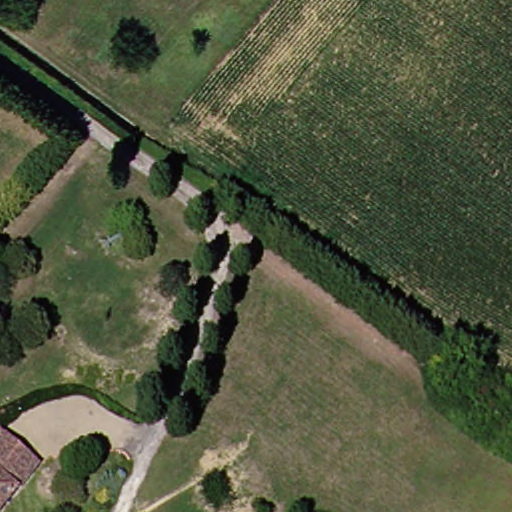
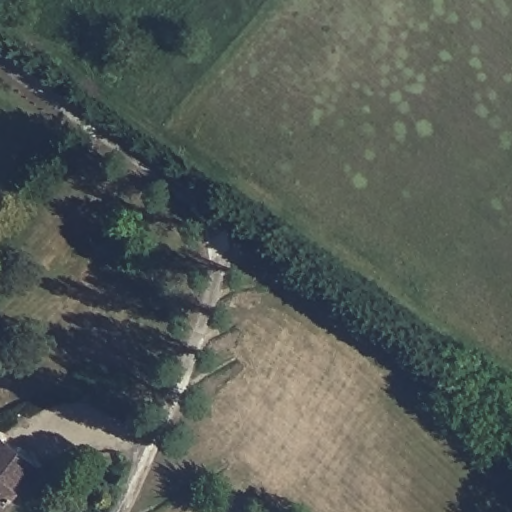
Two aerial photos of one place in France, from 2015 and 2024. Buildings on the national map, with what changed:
unchanged [(10,440),(41,463),(46,471),(14,512),(0,512),(0,452),(10,440)]

